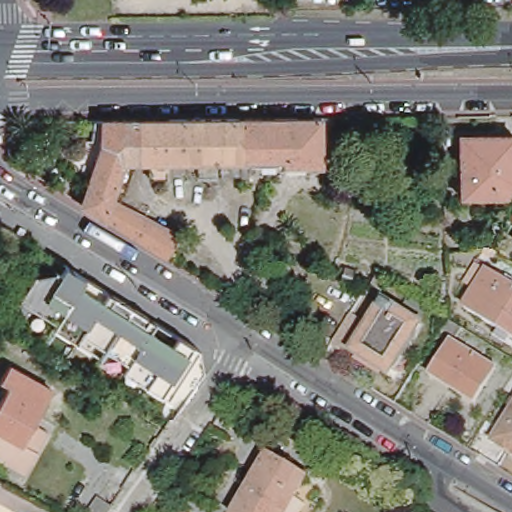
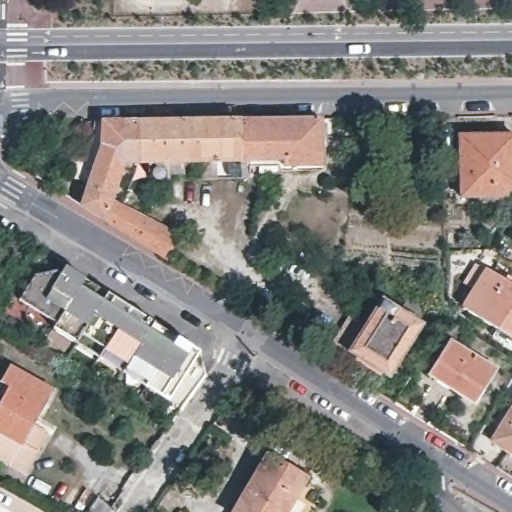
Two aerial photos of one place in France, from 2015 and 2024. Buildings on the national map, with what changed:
unchanged [(320,117),(320,166),(282,167),(282,161),(249,161),(250,179),(240,179),(240,161),(183,162),(183,175),(170,175),(170,162),(165,162),(165,179),(149,179),(148,163),(136,163),(135,120),(320,117)]
unchanged [(103,217),(82,204),(89,182),(75,176),(85,146),(89,147),(91,140),(91,121),(135,120),(136,163),(123,163),(110,200),(103,217)]
unchanged [(506,185),(498,185),(498,194),(465,195),(463,134),(512,133),(512,184),(509,185),(506,185)]
unchanged [(114,201),(177,236),(165,257),(103,217),(110,200),(114,201)]
unchanged [(49,325),(52,319),(17,298),(35,271),(60,275),(65,265),(197,348),(167,396),(49,325)]
unchanged [(356,272),(351,287),(340,284),(345,269),(356,272)]
unchanged [(480,297),(467,289),(479,270),(491,278),(512,290),(512,343),(469,315),(480,297)]
unchanged [(383,372),(350,351),(381,298),(420,322),(401,354),(388,375),(383,372)]
unchanged [(460,339),(446,330),(451,321),(464,330),(460,339)]
unchanged [(478,406),(434,379),(455,344),(500,371),(478,406)]
unchanged [(15,467),(0,459),(0,400),(3,394),(0,392),(0,381),(8,366),(52,391),(32,426),(48,435),(40,450),(27,473),(15,467)]
unchanged [(512,419),(512,454),(496,445),(512,419)]
unchanged [(306,476),(287,512),(233,512),(267,455),(306,476)]
unchanged [(109,512),(88,512),(98,496),(113,506),(109,512)]

